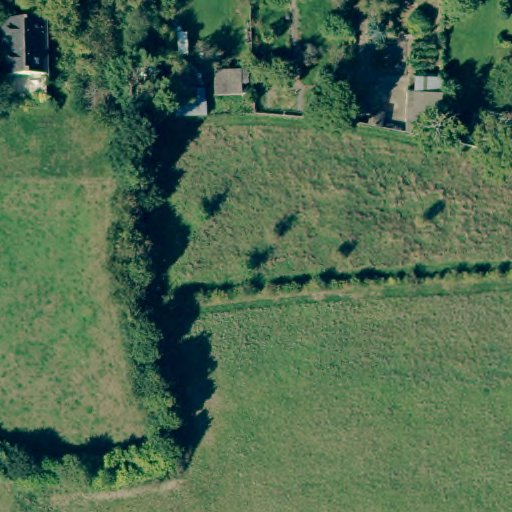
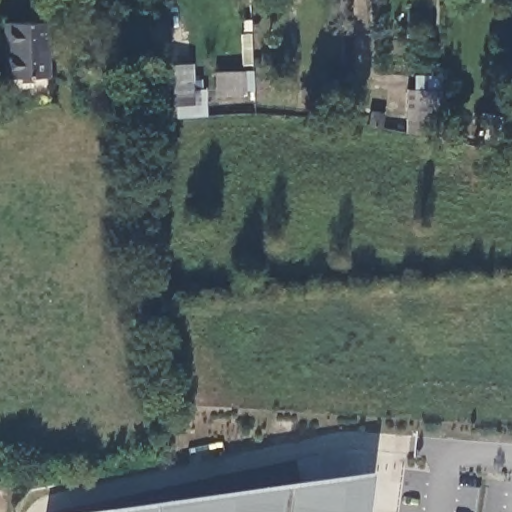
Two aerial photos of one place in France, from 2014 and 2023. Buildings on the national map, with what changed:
unchanged [(41,19),(42,74),(1,74),(0,19),(41,19)]
unchanged [(177,101),(177,63),(195,63),(195,88),(204,88),(204,101),(177,101)]
unchanged [(241,94),(215,94),(214,69),(241,69),(241,94)]
unchanged [(131,86),(130,107),(86,106),(85,80),(101,80),(100,85),(131,86)]
unchanged [(327,99),(327,85),(352,85),(353,100),(327,99)]
unchanged [(441,139),(436,138),(413,133),(404,131),(406,88),(415,88),(442,89),(441,139)]
unchanged [(487,111),(512,115),(512,142),(483,138),(487,111)]
new [(370,478),(366,512),(116,512),(370,478)]

